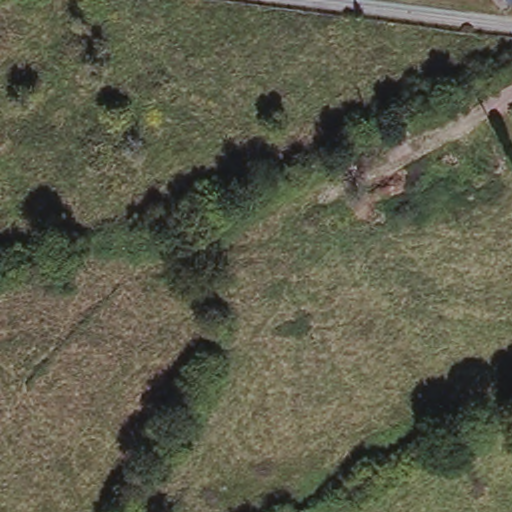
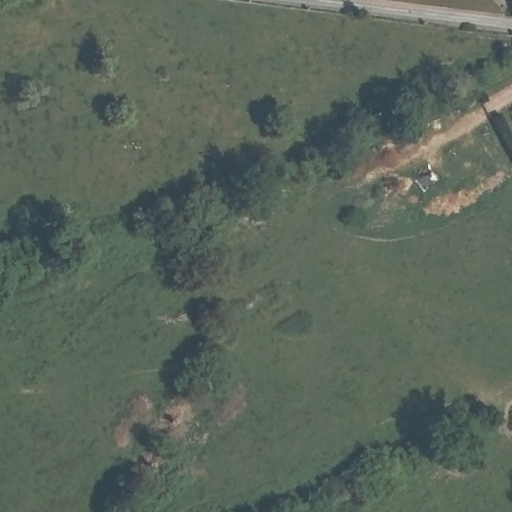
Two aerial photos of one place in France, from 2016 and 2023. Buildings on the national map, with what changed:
unchanged [(510,9),(503,0),(512,0),(512,8),(510,9)]
unchanged [(465,130),(440,141),(435,130),(459,117),(465,130)]

